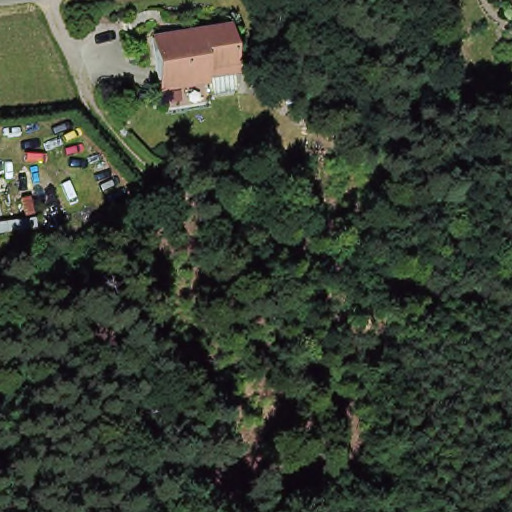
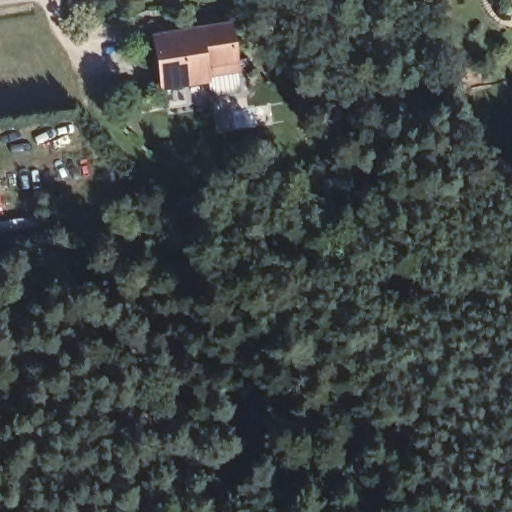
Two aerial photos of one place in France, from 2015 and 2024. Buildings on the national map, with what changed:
unchanged [(210,75),(211,80),(158,85),(151,34),(230,24),(235,64),(237,72),(210,75)]

